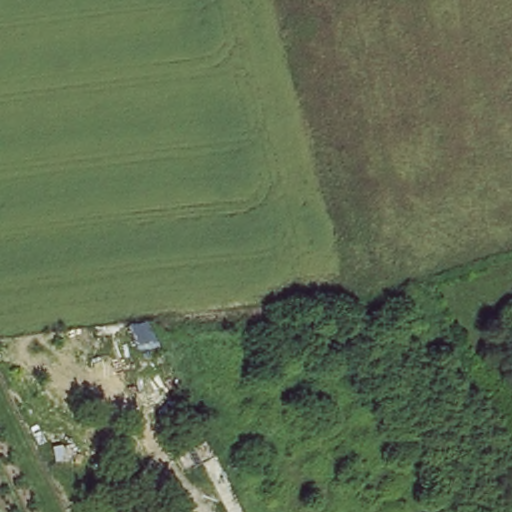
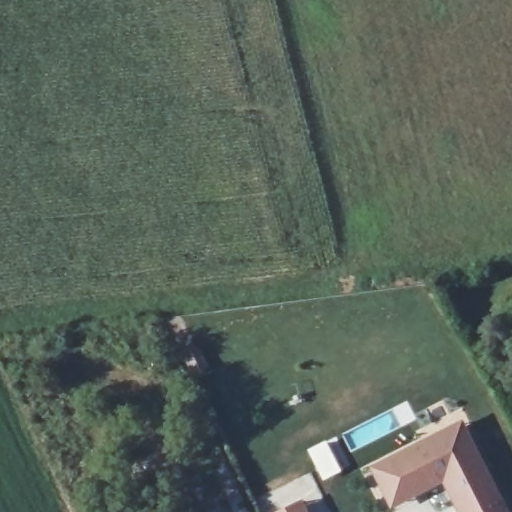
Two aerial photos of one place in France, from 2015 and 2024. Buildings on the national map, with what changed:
new [(511,512),(458,512),(444,484),(392,510),(370,466),(464,419),(511,512)]
new [(279,512),(303,500),(310,512),(279,512)]

